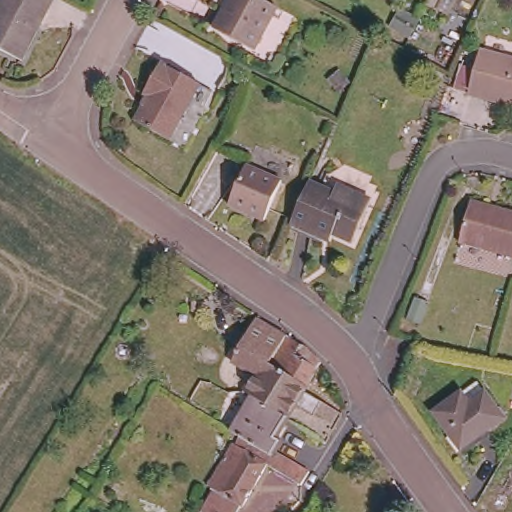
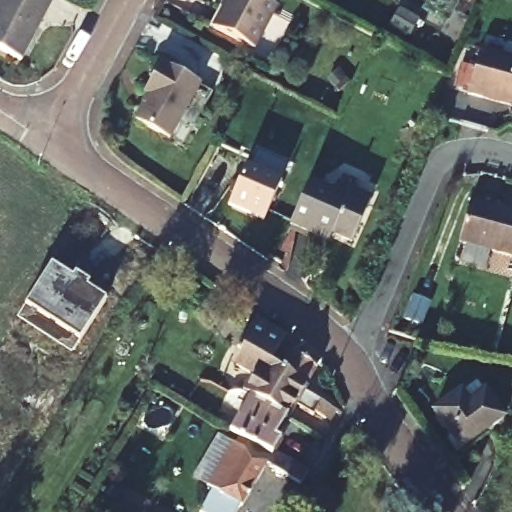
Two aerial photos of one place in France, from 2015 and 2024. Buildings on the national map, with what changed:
unchanged [(48,0),(50,1),(21,57),(0,46),(0,2),(1,0),(48,0)]
unchanged [(227,10),(232,0),(271,0),(275,2),(252,46),(212,25),(223,7),(227,10)]
unchanged [(470,92),(482,47),(512,56),(512,103),(470,92)]
unchanged [(149,94),(167,62),(206,82),(176,140),(142,122),(155,96),(149,94)]
unchanged [(227,205),(245,164),(282,181),(262,221),(227,205)]
unchanged [(335,185),(337,178),(371,195),(351,239),(329,227),(325,235),(294,221),(314,175),(335,185)]
unchanged [(512,203),(512,249),(462,236),(473,193),(512,203)]
new [(71,282),(74,275),(90,285),(86,290),(104,302),(80,343),(71,357),(16,321),(26,306),(51,267),(71,282)]
unchanged [(232,428),(252,394),(244,388),(255,370),(240,362),(237,348),(257,313),(289,332),(272,360),(309,382),(306,388),(333,405),(329,410),(326,415),(315,410),(312,412),(297,403),(289,415),(277,435),(281,438),(276,448),(273,451),(242,435),(232,428)]
unchanged [(292,334),(301,340),(306,343),(314,350),(322,358),(321,360),(309,382),(272,360),(289,332),(292,334)]
unchanged [(462,458),(436,419),(460,398),(471,390),(477,390),(484,397),(505,425),(462,458)]
unchanged [(287,456),(292,459),(311,468),(302,481),(284,471),(267,461),(243,502),(241,501),(235,512),(205,512),(199,508),(212,485),(210,484),(234,440),(238,442),(242,435),(273,451),(276,448),(287,456)]

